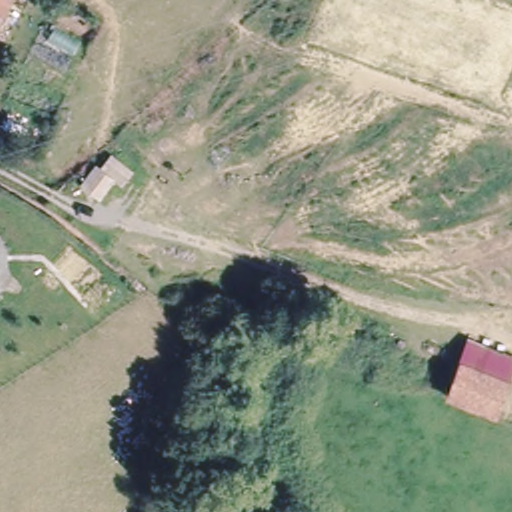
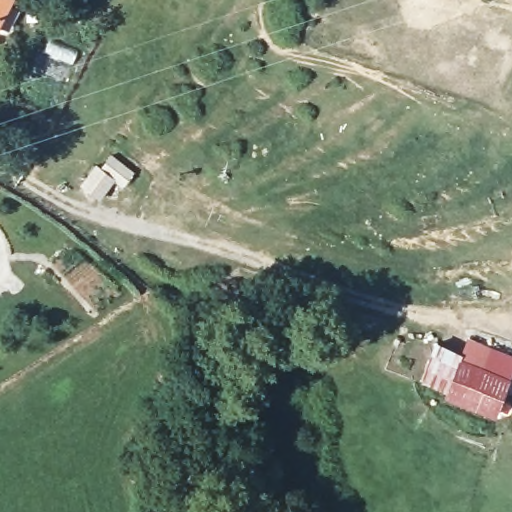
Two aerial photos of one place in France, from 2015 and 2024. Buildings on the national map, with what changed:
unchanged [(0,15),(0,0),(5,0),(8,1),(0,15)]
unchanged [(81,186),(96,165),(101,169),(112,155),(134,174),(122,189),(114,182),(101,201),(81,186)]
unchanged [(470,337),(512,354),(512,372),(497,412),(448,393),(470,337)]

